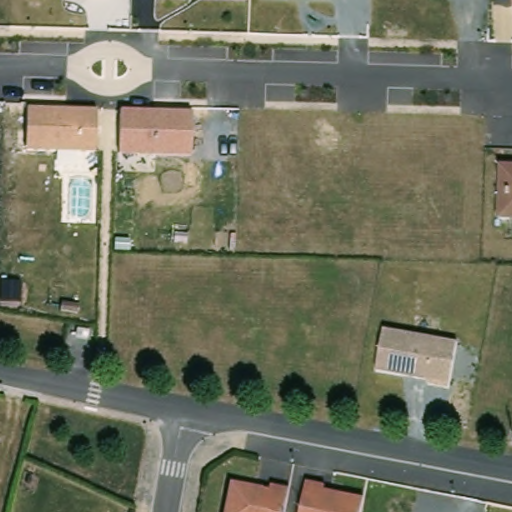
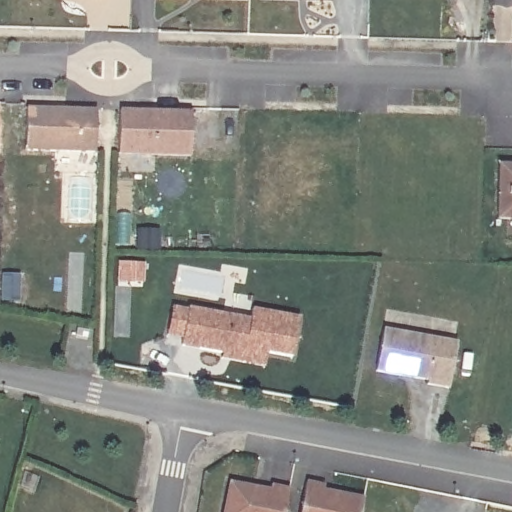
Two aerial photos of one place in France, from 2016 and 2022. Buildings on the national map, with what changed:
unchanged [(96,106),(97,151),(26,150),(26,103),(96,106)]
unchanged [(194,108),(194,155),(120,152),(120,106),(194,108)]
unchanged [(512,160),(512,216),(498,215),(499,159),(512,160)]
new [(220,360),(221,352),(181,345),(183,339),(166,335),(172,308),(187,310),(188,307),(251,318),(252,309),(299,317),(291,357),(266,352),(264,367),(220,360)]
unchanged [(460,337),(452,388),(427,383),(427,379),(377,369),(384,322),(460,337)]
unchanged [(272,487),(273,482),(291,485),(285,512),(224,512),(231,478),(272,487)]
unchanged [(301,512),(308,479),(326,482),(325,487),(365,495),(362,512),(301,512)]

